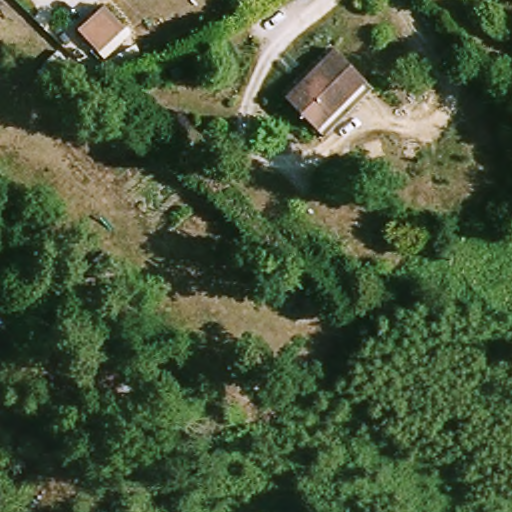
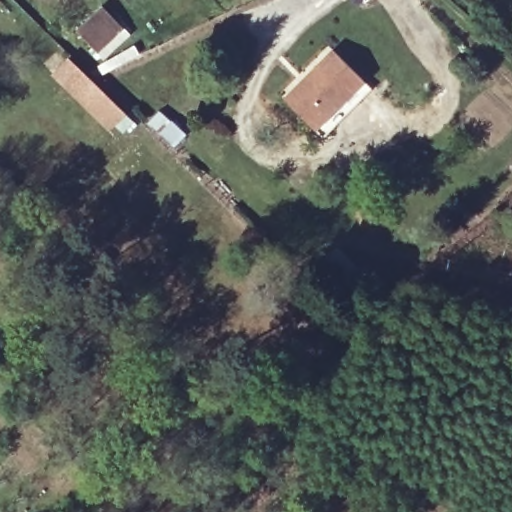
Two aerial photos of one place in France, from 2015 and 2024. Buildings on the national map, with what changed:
unchanged [(98,2),(120,23),(95,47),(74,26),(98,2)]
unchanged [(329,131),(320,123),(294,97),(292,93),(311,74),(339,46),(368,74),(378,85),(329,131)]
unchanged [(72,61),(52,81),(43,71),(62,51),(72,61)]
new [(109,131),(56,79),(73,61),(134,120),(123,132),(115,124),(109,131)]
unchanged [(0,286),(23,307),(0,329),(0,328),(0,286)]

